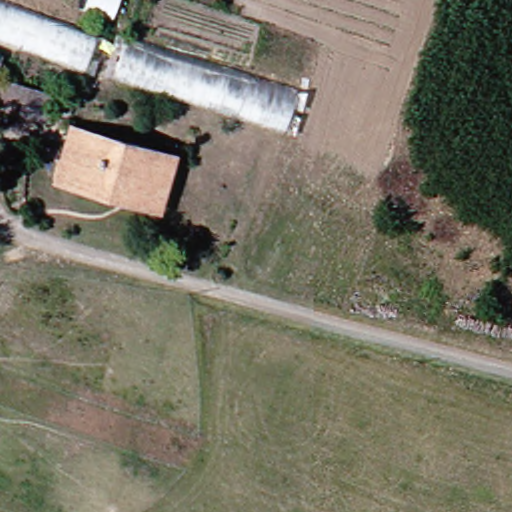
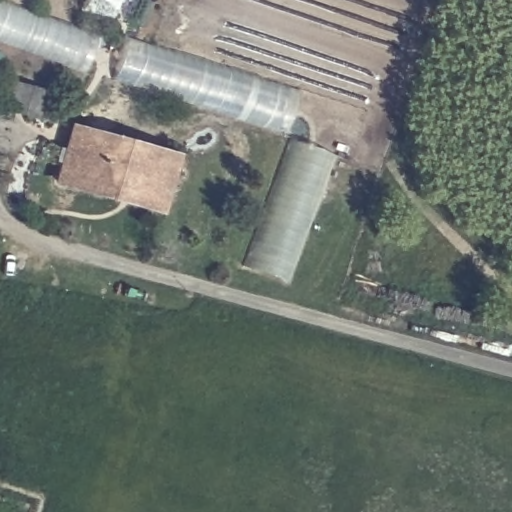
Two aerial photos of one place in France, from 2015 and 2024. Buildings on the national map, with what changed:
unchanged [(99,77),(99,72),(0,39),(0,0),(9,0),(110,35),(112,28),(267,78),(252,125),(99,77)]
unchanged [(0,107),(0,82),(46,96),(41,118),(0,107)]
unchanged [(72,185),(49,179),(58,148),(64,123),(167,154),(154,199),(151,206),(72,185)]
new [(291,284),(241,268),(289,139),(333,155),(291,284)]

